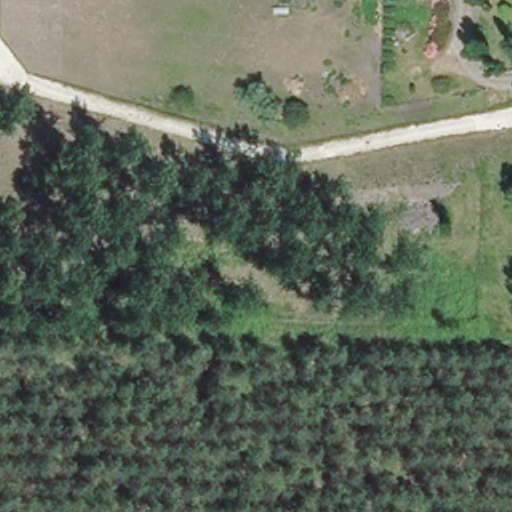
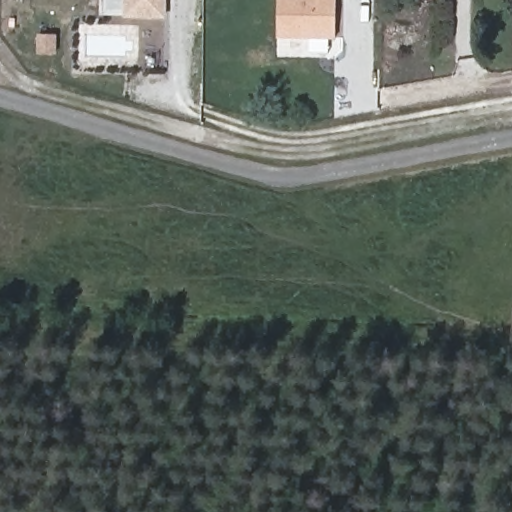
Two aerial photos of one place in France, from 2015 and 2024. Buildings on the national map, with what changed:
new [(167,18),(125,17),(125,0),(167,0),(167,18)]
new [(336,39),(278,38),(278,0),(337,0),(337,15),(336,39)]

